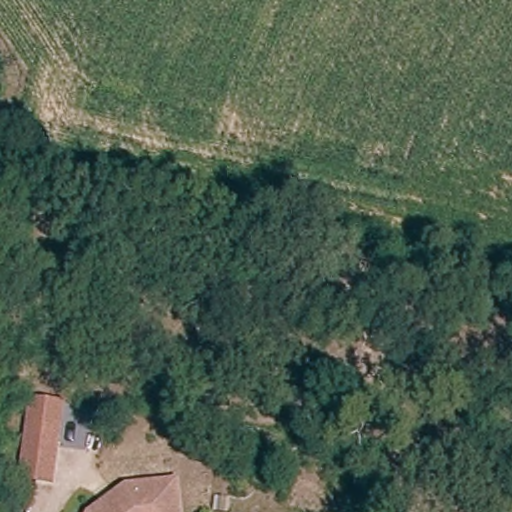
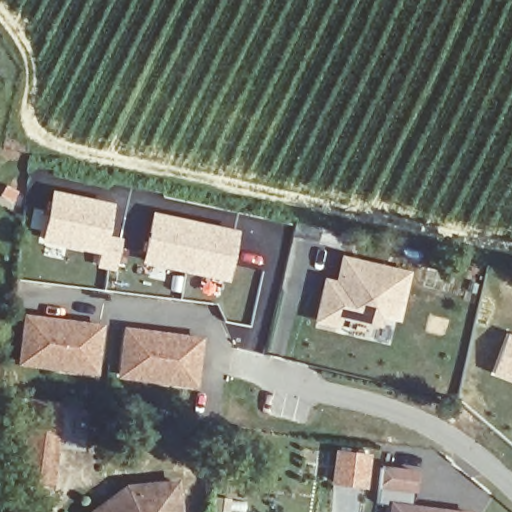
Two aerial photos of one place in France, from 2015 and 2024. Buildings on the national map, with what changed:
new [(110,207),(104,240),(120,242),(115,267),(97,264),(100,250),(44,239),(54,196),(110,207)]
new [(235,235),(226,278),(144,262),(154,217),(235,235)]
new [(336,281),(341,256),(412,272),(399,322),(383,318),(381,327),(341,319),(338,330),(313,325),(323,278),(336,281)]
new [(97,375),(18,364),(23,311),(104,320),(97,375)]
new [(124,326),(200,336),(194,384),(118,376),(124,326)]
new [(512,335),(512,383),(491,375),(508,333),(512,335)]
unchanged [(30,399),(65,404),(56,486),(21,478),(30,399)]
new [(336,449),(371,453),(367,486),(332,483),(336,449)]
unchanged [(170,479),(175,512),(84,512),(120,487),(170,479)]
new [(472,509),(472,512),(388,512),(390,500),(472,509)]

